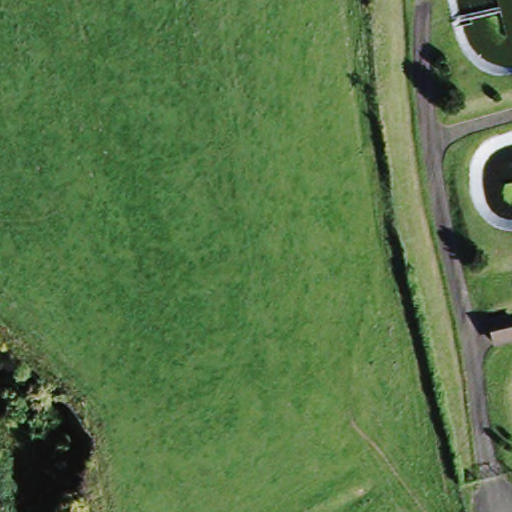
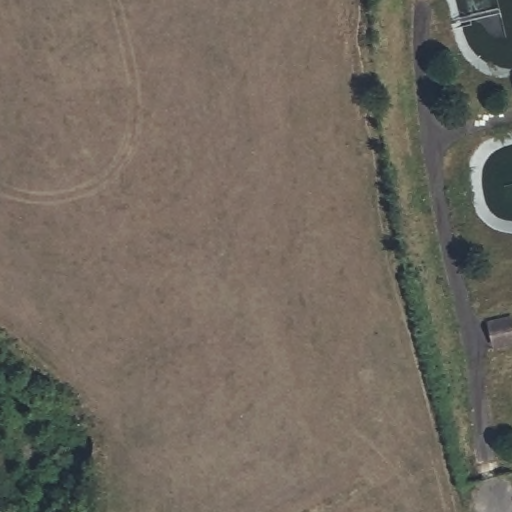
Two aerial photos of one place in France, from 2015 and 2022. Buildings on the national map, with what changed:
unchanged [(487,323),(512,321),(512,347),(490,351),(487,323)]

